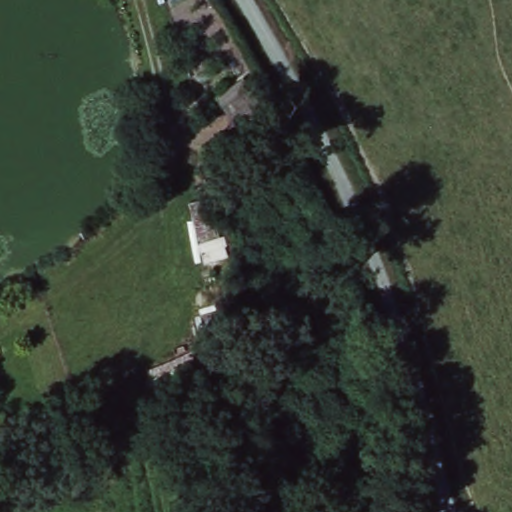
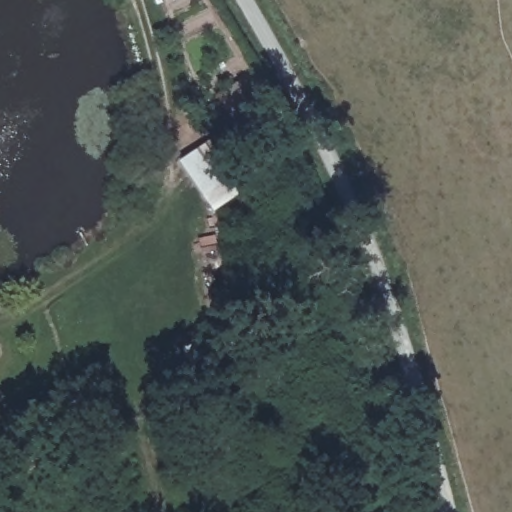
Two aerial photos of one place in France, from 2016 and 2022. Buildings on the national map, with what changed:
new [(180,160),(204,143),(239,192),(212,209),(180,160)]

